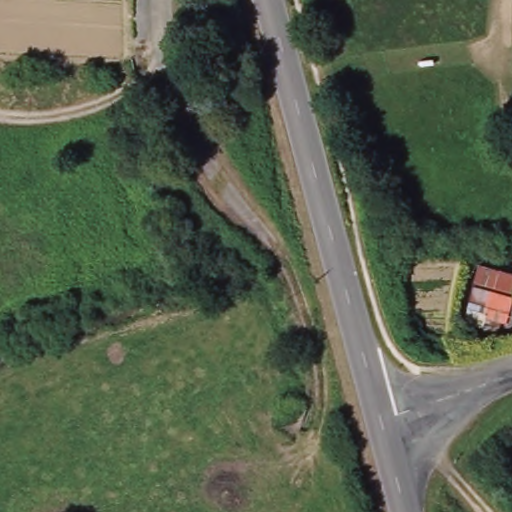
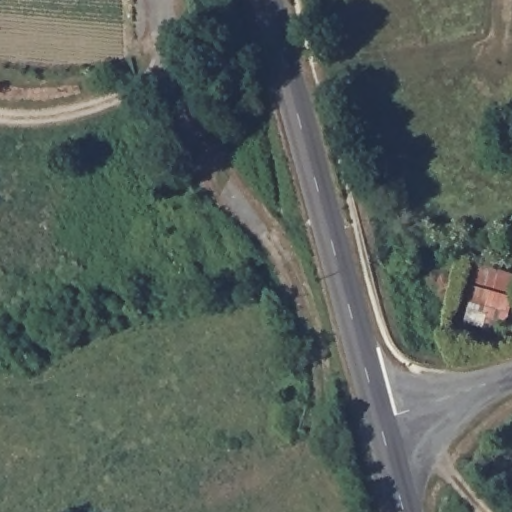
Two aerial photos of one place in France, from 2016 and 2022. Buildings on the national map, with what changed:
unchanged [(480,285),(489,287),(498,265),(512,270),(512,326),(468,313),(480,285)]

